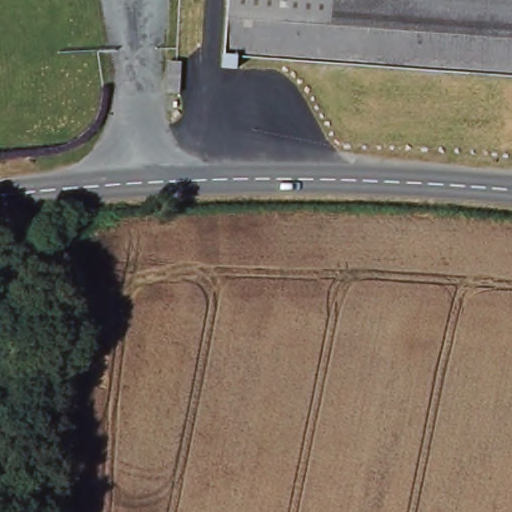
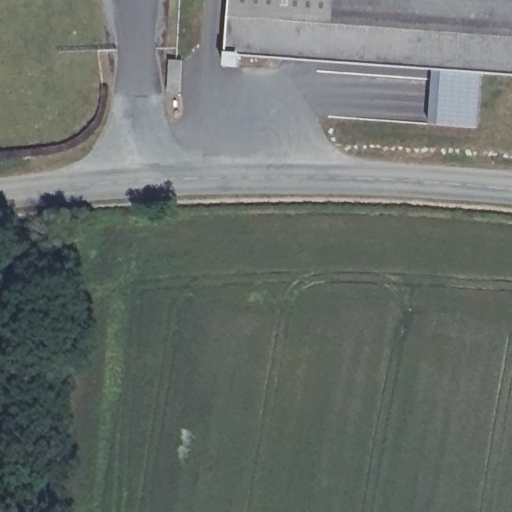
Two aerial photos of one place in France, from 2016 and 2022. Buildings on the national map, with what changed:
unchanged [(239,52),(237,64),(224,64),(229,0),(512,0),(512,73),(239,52)]
new [(430,123),(433,67),(480,70),(477,128),(430,123)]

